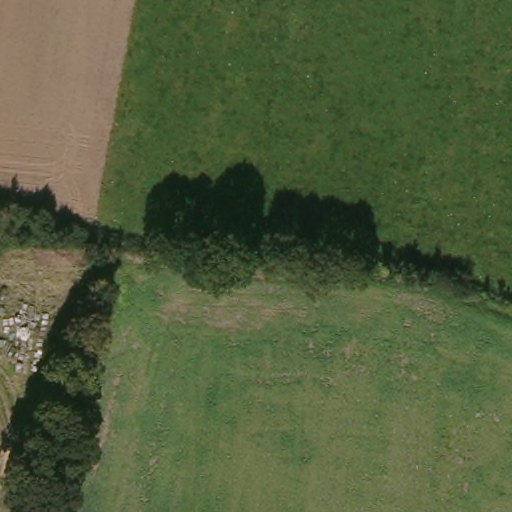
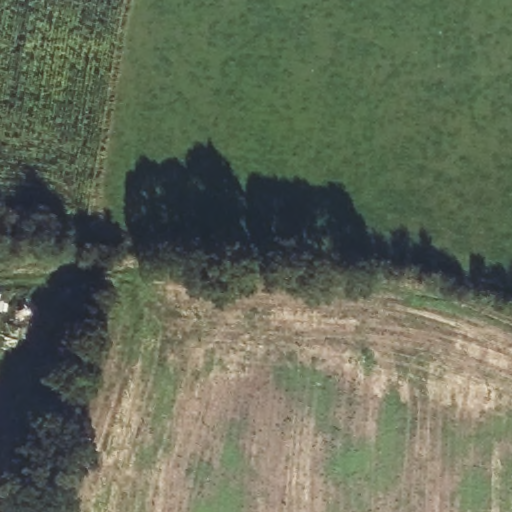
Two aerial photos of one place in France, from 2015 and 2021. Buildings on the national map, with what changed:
[]

